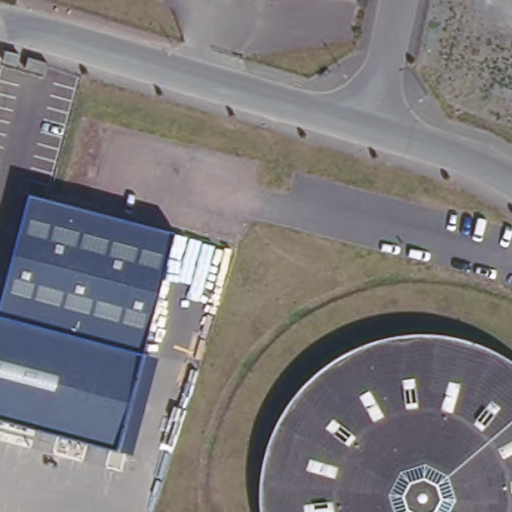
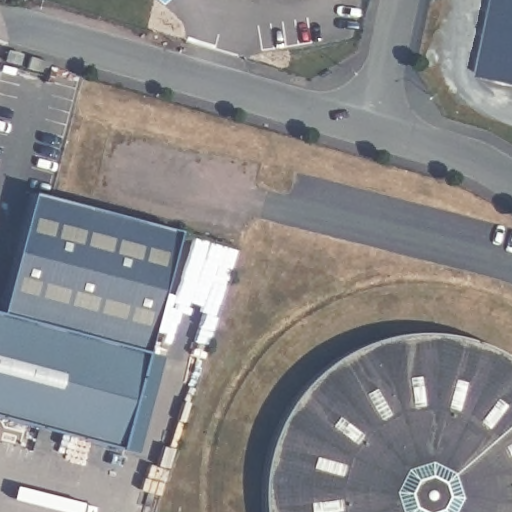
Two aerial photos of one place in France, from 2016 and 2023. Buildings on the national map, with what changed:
new [(496,0),(512,0),(512,82),(480,75),(496,0)]
unchanged [(174,232),(141,352),(0,314),(0,304),(28,191),(174,232)]
unchanged [(141,352),(116,447),(0,415),(0,314),(141,352)]
unchanged [(265,478),(271,442),(295,395),(315,375),(341,355),(384,338),(406,331),(445,332),(485,342),(512,359),(512,512),(265,512),(265,478)]

